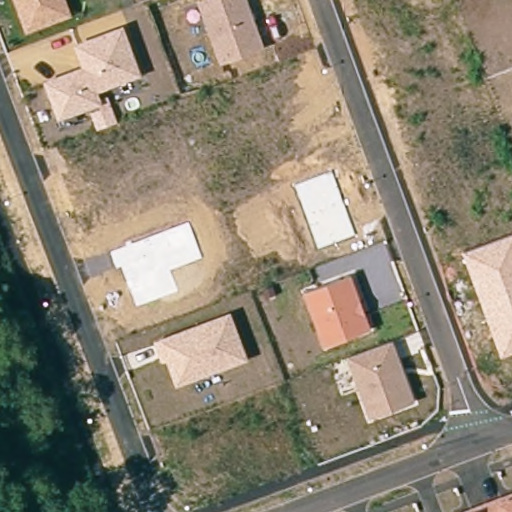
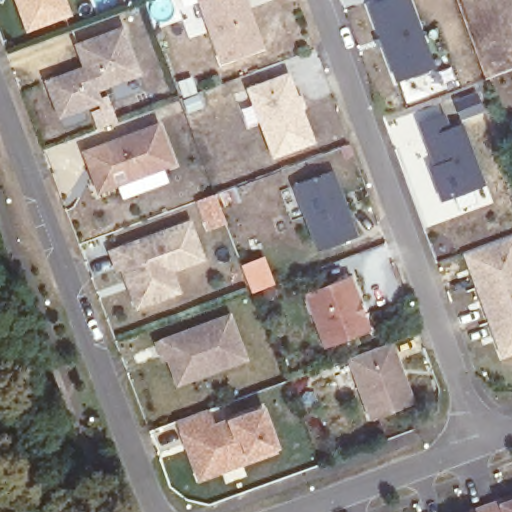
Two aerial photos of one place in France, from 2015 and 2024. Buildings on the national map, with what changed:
unchanged [(67,0),(73,16),(25,33),(13,0),(67,0)]
unchanged [(248,0),(265,50),(220,65),(196,0),(248,0)]
new [(418,0),(443,70),(406,83),(380,7),(399,0),(418,0)]
unchanged [(43,80),(82,66),(74,43),(125,25),(142,76),(105,89),(116,123),(95,130),(89,107),(57,119),(43,80)]
new [(246,88),(290,72),(315,141),(271,157),(246,88)]
new [(435,140),(430,126),(453,118),(458,131),(472,126),(493,186),(451,202),(445,183),(440,170),(445,168),(435,140)]
new [(157,124),(172,165),(96,194),(81,153),(157,124)]
unchanged [(293,186),(331,172),(355,237),(317,250),(293,186)]
unchanged [(122,267),(116,269),(110,251),(189,223),(202,259),(170,270),(178,292),(136,306),(122,267)]
unchanged [(461,253),(512,234),(512,354),(500,359),(461,253)]
new [(262,259),(271,285),(250,293),(240,268),(262,259)]
unchanged [(303,292),(351,277),(370,330),(322,348),(303,292)]
unchanged [(166,361),(161,362),(155,340),(230,312),(247,362),(175,387),(166,361)]
unchanged [(346,357),(393,341),(415,403),(369,419),(346,357)]
new [(210,408),(215,422),(224,418),(262,404),(278,446),(278,451),(197,482),(175,420),(210,408)]
unchanged [(512,492),(512,512),(459,512),(512,492)]

